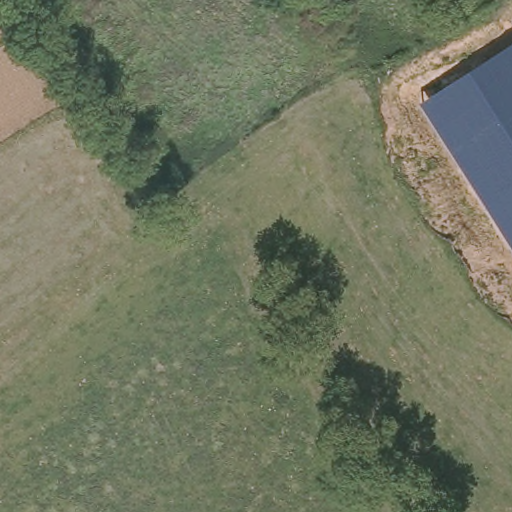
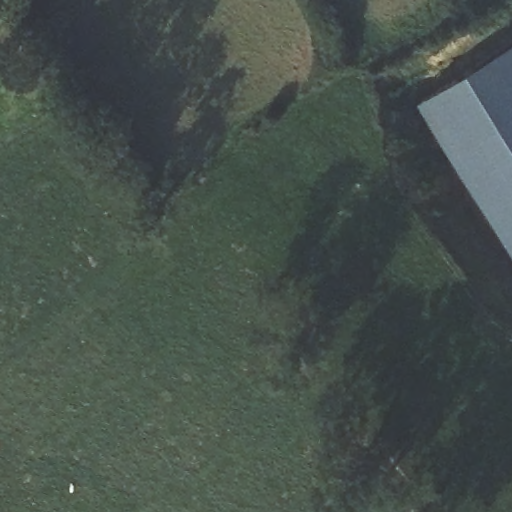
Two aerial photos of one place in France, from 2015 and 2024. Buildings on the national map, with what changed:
unchanged [(419,106),(512,44),(512,249),(419,106)]

